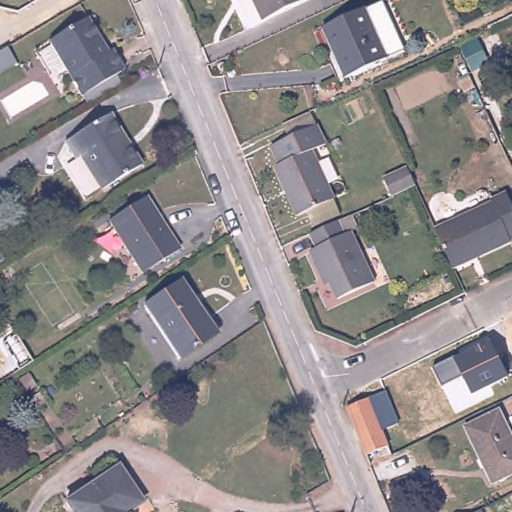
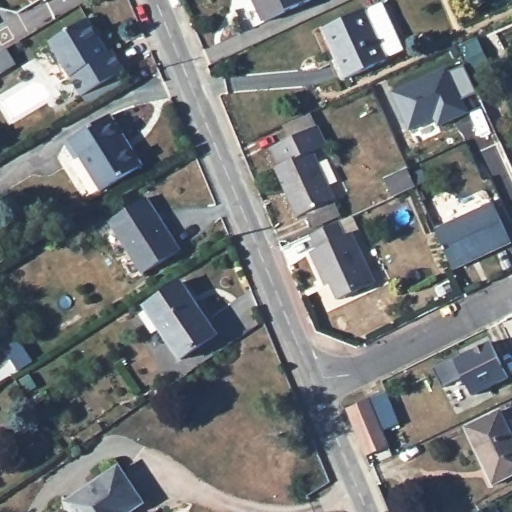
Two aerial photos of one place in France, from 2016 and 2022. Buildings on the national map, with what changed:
unchanged [(311,2),(266,22),(256,0),(311,0),(311,2)]
unchanged [(369,6),(381,0),(386,0),(408,47),(392,55),(350,74),(337,46),(328,25),(369,6)]
unchanged [(90,16),(105,41),(102,42),(108,51),(114,48),(126,67),(84,92),(51,39),(90,16)]
new [(447,67),(449,72),(464,65),(477,93),(462,100),(468,112),(438,127),(434,118),(409,130),(391,92),(447,67)]
unchanged [(116,114),(148,165),(107,191),(85,155),(80,157),(70,142),(116,114)]
unchanged [(322,123),(331,142),(317,149),(339,196),(302,212),(280,164),(284,162),(276,144),(322,123)]
unchanged [(414,183),(390,194),(383,179),(407,167),(414,183)]
unchanged [(440,232),(497,206),(495,202),(510,196),(512,199),(512,246),(481,261),(458,272),(457,270),(440,232)]
unchanged [(152,197),(185,249),(147,273),(114,222),(152,197)]
unchanged [(341,226),(347,239),(353,236),(377,286),(341,302),(330,279),(325,282),(313,255),(320,251),(314,238),(341,226)]
unchanged [(181,280),(217,334),(180,359),(160,330),(144,305),(181,280)]
unchanged [(433,367),(455,357),(489,341),(508,381),(470,397),(462,377),(443,387),(433,367)]
unchanged [(356,405),(390,391),(405,425),(388,432),(394,445),(371,455),(351,407),(356,405)]
unchanged [(470,426),(506,411),(512,424),(512,478),(502,482),(498,484),(490,467),(470,426)]
unchanged [(395,448),(397,454),(386,459),(383,453),(395,448)]
unchanged [(109,476),(123,467),(148,503),(135,512),(75,512),(69,503),(109,476)]
unchanged [(486,512),(482,512),(485,511),(486,512)]

